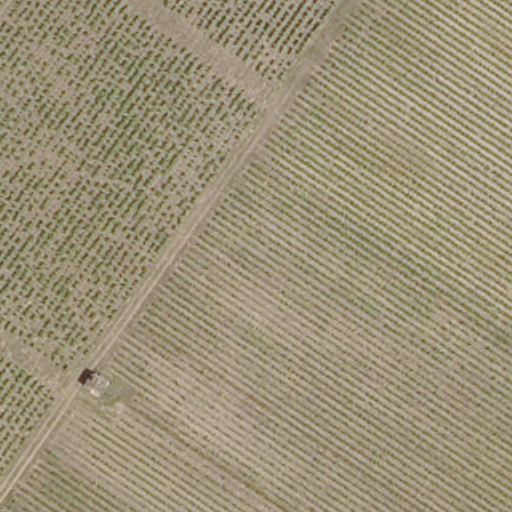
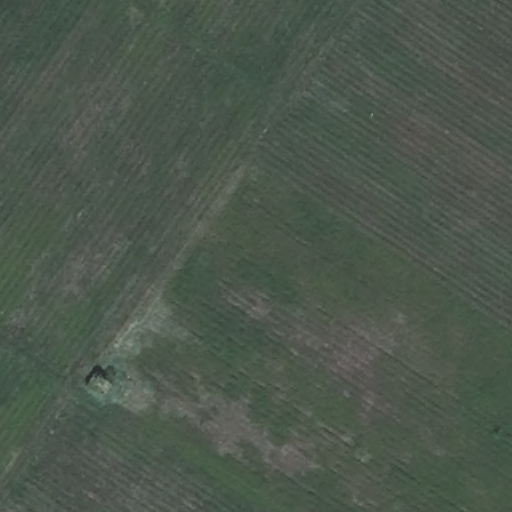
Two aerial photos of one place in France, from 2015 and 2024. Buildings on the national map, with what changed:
unchanged [(113,379),(106,390),(94,382),(101,371),(113,379)]

